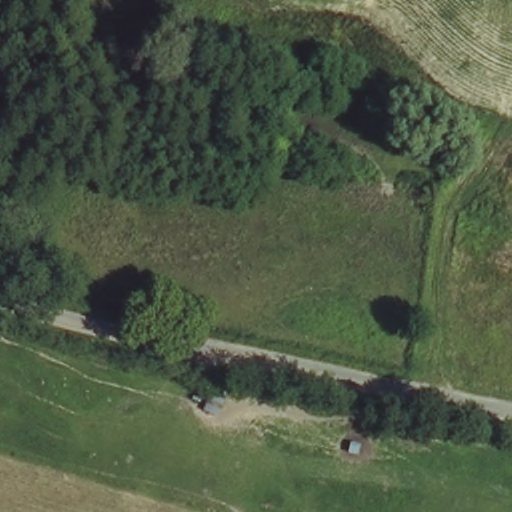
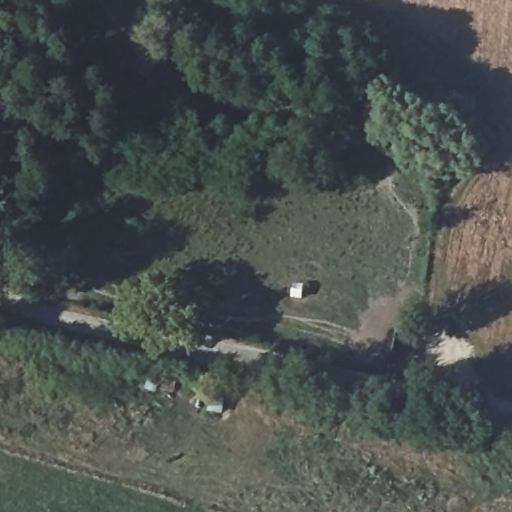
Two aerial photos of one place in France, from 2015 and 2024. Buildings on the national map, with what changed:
unchanged [(211,387),(229,397),(217,417),(200,404),(211,387)]

